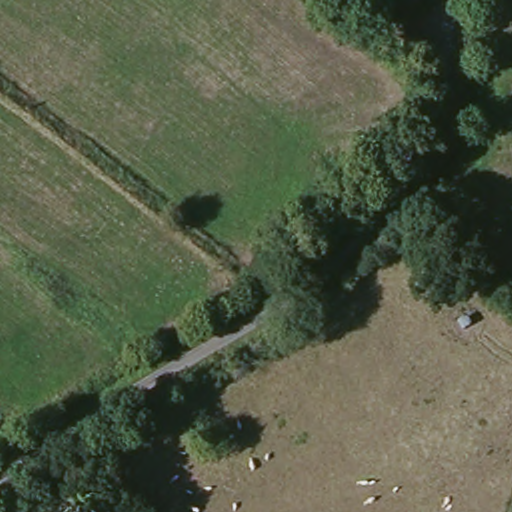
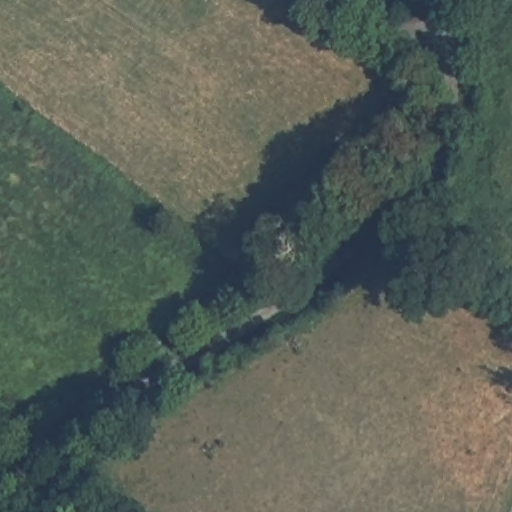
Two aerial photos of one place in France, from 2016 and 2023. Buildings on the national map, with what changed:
[]

